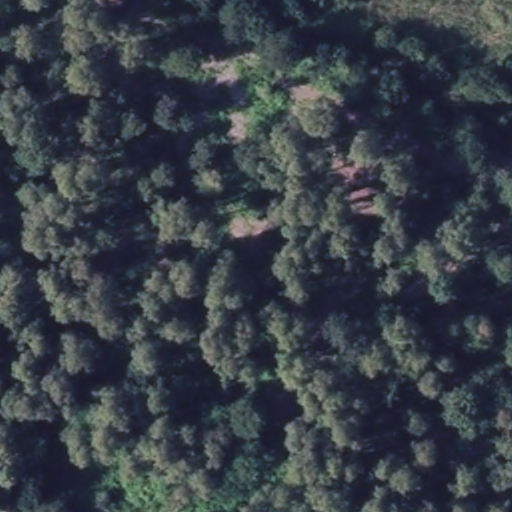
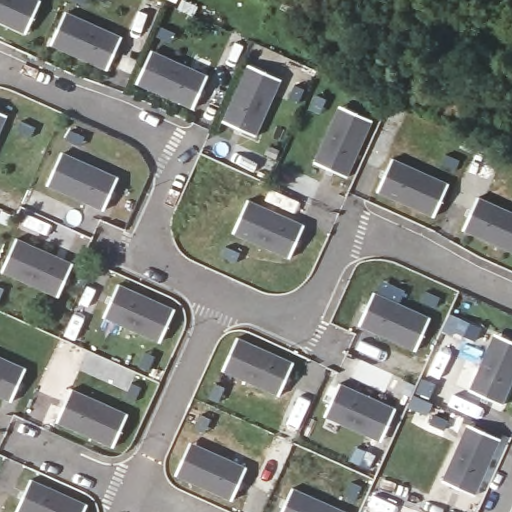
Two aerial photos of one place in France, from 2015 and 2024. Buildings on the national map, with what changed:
new [(31,20),(24,35),(0,25),(0,0),(32,0),(39,3),(31,20)]
new [(85,5),(73,0),(88,0),(85,5)]
new [(63,14),(77,20),(120,40),(105,72),(48,46),(55,31),(63,14)]
new [(161,29),(174,35),(170,45),(157,38),(161,29)]
new [(148,53),(163,59),(205,79),(190,111),(134,85),(141,69),(148,53)]
new [(262,75),(278,83),(272,97),(252,139),(220,125),(246,68),(262,75)]
new [(294,86),(303,90),(297,104),(288,99),(294,86)]
new [(316,96),(325,100),(319,113),(310,110),(316,96)]
new [(337,109),(353,117),(369,124),(343,181),(311,166),(330,123),(337,109)]
new [(7,118),(0,132),(0,134),(0,115),(7,118)]
new [(24,123),(37,129),(33,137),(19,131),(24,123)]
new [(73,130),(87,136),(83,145),(69,139),(73,130)]
new [(64,151),(78,157),(121,177),(106,209),(49,183),(56,167),(64,151)]
new [(445,154),(459,160),(455,170),(441,164),(445,154)]
new [(437,204),(430,220),(373,194),(388,162),(431,181),(445,188),(437,204)]
new [(249,199),(264,206),(306,225),(292,258),(235,232),(242,215),(249,199)]
new [(474,201),(512,218),(512,258),(459,234),(474,201)]
new [(75,263),(60,295),(18,276),(3,269),(11,253),(18,237),(75,263)]
new [(228,246),(242,252),(238,261),(224,255),(228,246)]
new [(147,335),(105,316),(120,283),(177,309),(169,325),(162,341),(147,335)]
new [(6,287),(0,301),(0,285),(6,287)]
new [(423,335),(416,351),(359,325),(374,292),(417,312),(431,318),(423,335)]
new [(427,292),(440,298),(436,307),(422,301),(427,292)]
new [(466,326),(480,332),(476,342),(462,335),(466,326)]
new [(295,363),(280,395),(238,376),(223,369),(231,353),(238,337),(295,363)]
new [(511,347),(512,347),(512,387),(501,411),(468,396),(488,353),(494,339),(511,347)]
new [(146,351),(155,355),(149,369),(140,365),(146,351)]
new [(27,367),(13,400),(0,394),(0,355),(27,367)]
new [(132,382),(141,386),(135,400),(126,395),(132,382)]
new [(217,383),(226,387),(220,401),(211,397),(217,383)]
new [(367,435),(325,416),(340,383),(396,409),(389,425),(382,442),(367,435)]
new [(121,430),(114,446),(57,420),(72,388),(115,407),(129,413),(121,430)]
new [(203,414),(212,418),(206,432),(197,428),(203,414)]
new [(434,415),(447,421),(443,430),(429,424),(434,415)]
new [(466,430),(483,437),(499,444),(473,501),(440,487),(460,444),(466,430)]
new [(190,441),(205,448),(247,467),(233,500),(176,474),(183,458),(190,441)]
new [(356,447),(365,451),(359,464),(349,460),(356,447)]
new [(31,478),(88,504),(84,512),(20,512),(16,510),(31,478)]
new [(352,482),(361,486),(355,500),(346,496),(352,482)]
new [(335,507),(346,512),(281,512),(292,488),(335,507)]

